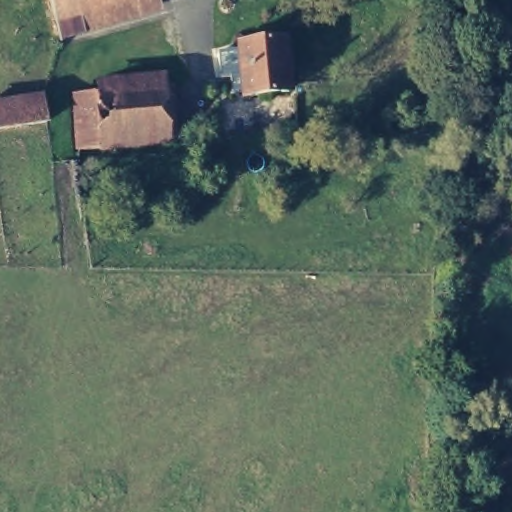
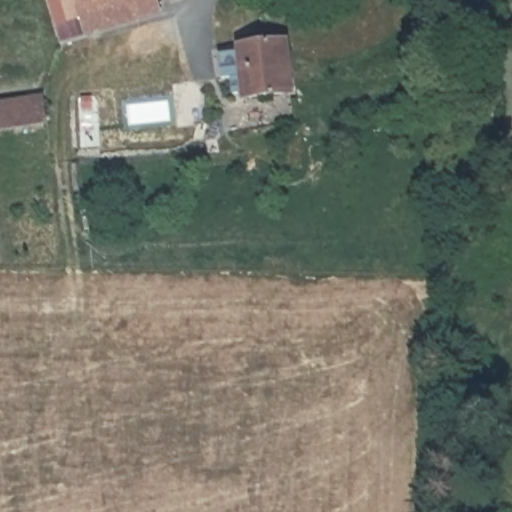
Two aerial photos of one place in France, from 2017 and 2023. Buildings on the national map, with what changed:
unchanged [(88,12),(90,22),(79,24),(76,16),(53,22),(47,1),(47,0),(132,0),(88,12)]
unchanged [(291,91),(245,94),(244,89),(234,89),(233,50),(243,49),(243,42),(288,39),(291,91)]
demolished [(76,125),(73,97),(163,89),(168,143),(78,150),(76,125)]
unchanged [(46,118),(0,130),(0,104),(41,93),(46,118)]

